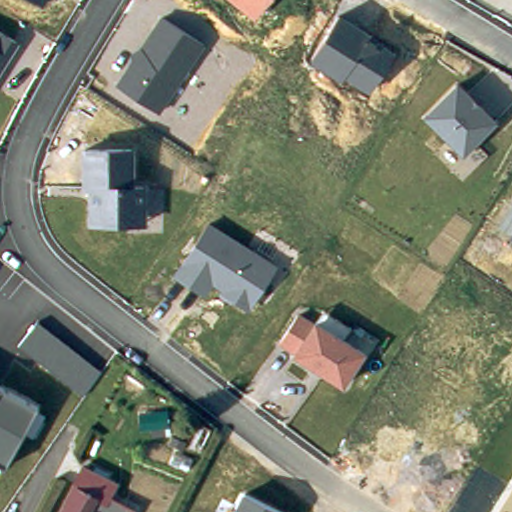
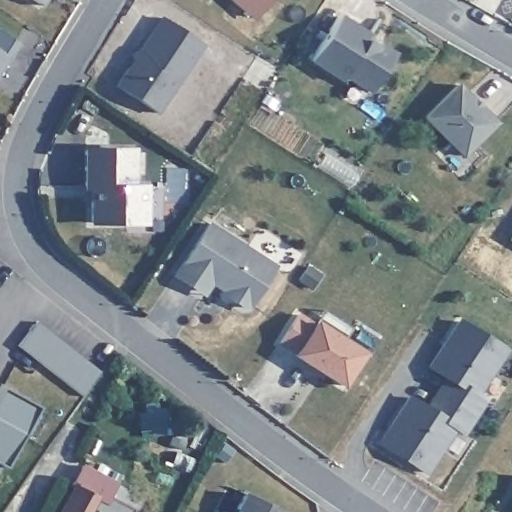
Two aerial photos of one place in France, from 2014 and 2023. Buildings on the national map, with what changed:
unchanged [(46,3),(41,0),(48,0),(46,3)]
unchanged [(255,19),(232,0),(270,0),(255,19)]
unchanged [(370,32),(367,38),(395,52),(370,93),(345,77),(341,82),(309,62),(338,14),(370,32)]
unchanged [(206,44),(160,114),(115,86),(161,16),(206,44)]
unchanged [(0,76),(0,30),(20,42),(0,76)]
unchanged [(498,123),(463,156),(423,117),(458,82),(498,123)]
unchanged [(135,146),(135,184),(147,184),(147,224),(87,225),(87,190),(81,190),(81,147),(135,146)]
unchanged [(278,265),(252,308),(213,285),(205,297),(173,276),(208,222),(278,265)]
unchanged [(507,239),(512,231),(512,241),(507,239)]
unchanged [(365,352),(343,387),(293,355),(294,353),(278,343),(298,310),(365,352)]
new [(486,398),(463,435),(455,431),(428,475),(376,445),(408,395),(423,403),(441,376),(425,367),(457,318),(507,349),(479,393),(486,398)]
unchanged [(102,372),(83,396),(18,346),(37,321),(102,372)]
unchanged [(5,468),(0,466),(0,387),(36,407),(5,468)]
unchanged [(66,485),(77,465),(111,482),(100,502),(90,497),(81,512),(55,512),(68,486),(66,485)]
unchanged [(233,512),(243,492),(285,512),(233,512)]
new [(137,512),(81,512),(90,497),(100,502),(105,493),(138,511),(137,512)]

